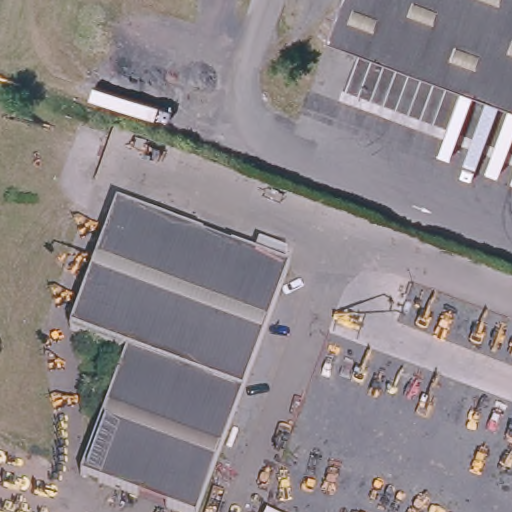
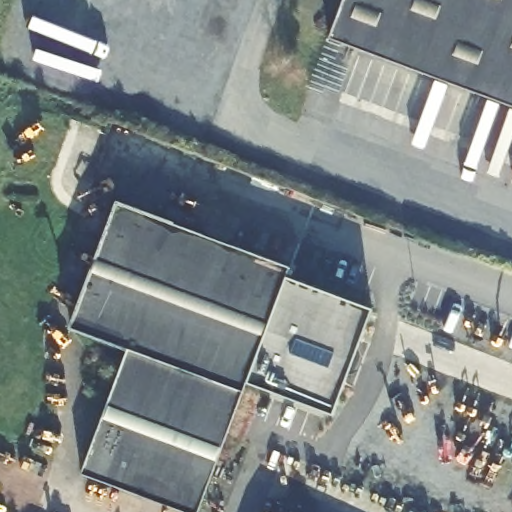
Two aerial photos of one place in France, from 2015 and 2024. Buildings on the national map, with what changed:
unchanged [(337,0),(512,0),(512,107),(324,33),(337,0)]
unchanged [(194,512),(183,512),(78,472),(126,348),(70,327),(117,203),(288,268),(194,512)]
unchanged [(255,254),(258,242),(287,253),(282,264),(255,254)]
new [(245,380),(285,275),(372,309),(332,414),(245,380)]

